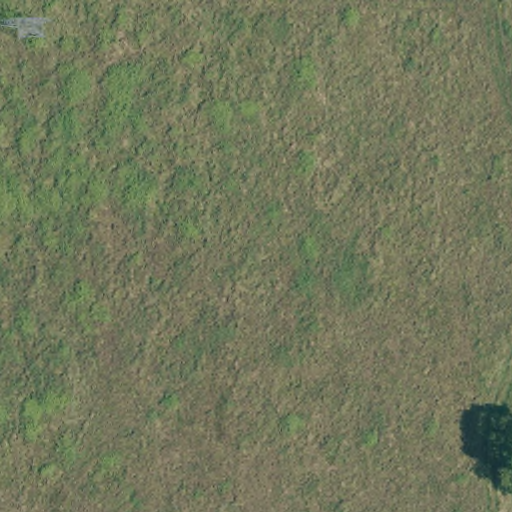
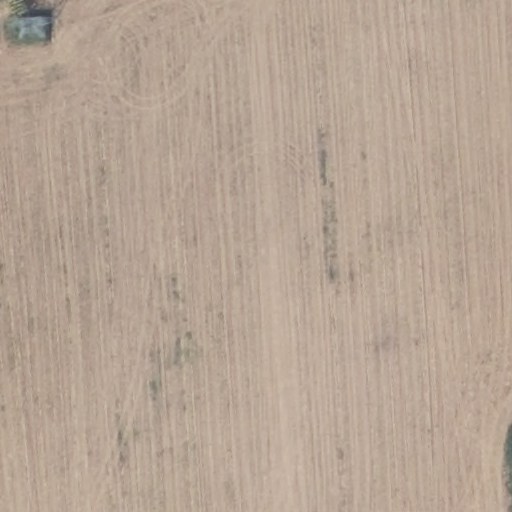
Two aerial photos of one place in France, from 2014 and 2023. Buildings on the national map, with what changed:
[]

